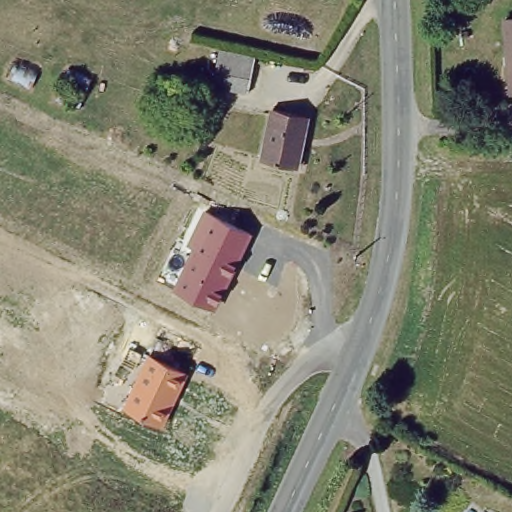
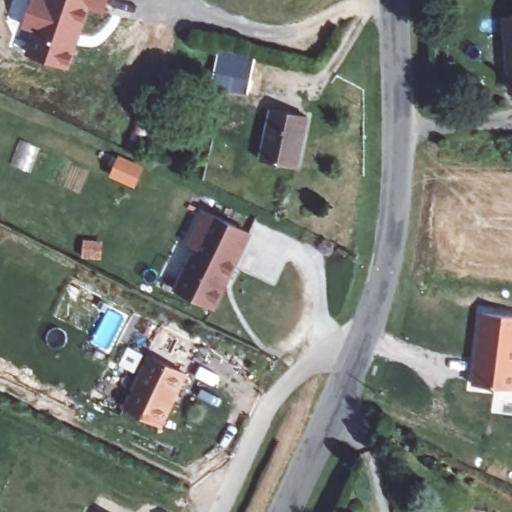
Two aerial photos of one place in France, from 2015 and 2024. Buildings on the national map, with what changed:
new [(80,6),(76,17),(85,20),(73,55),(67,53),(63,65),(25,52),(32,31),(22,27),(31,0),(109,0),(105,14),(80,6)]
unchanged [(512,89),(507,90),(499,18),(512,16),(512,89)]
unchanged [(257,51),(248,88),(207,77),(216,41),(257,51)]
unchanged [(304,111),(293,158),(260,150),(271,102),(304,111)]
unchanged [(192,248),(186,244),(205,208),(253,232),(217,310),(172,288),(192,248)]
new [(512,317),(512,389),(472,384),(480,313),(512,317)]
unchanged [(147,353),(187,372),(163,428),(123,408),(147,353)]

